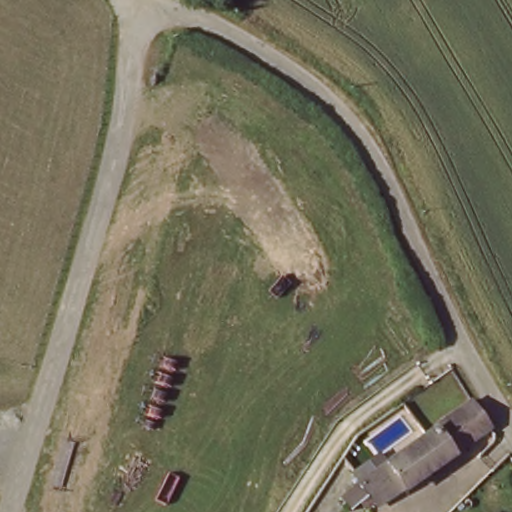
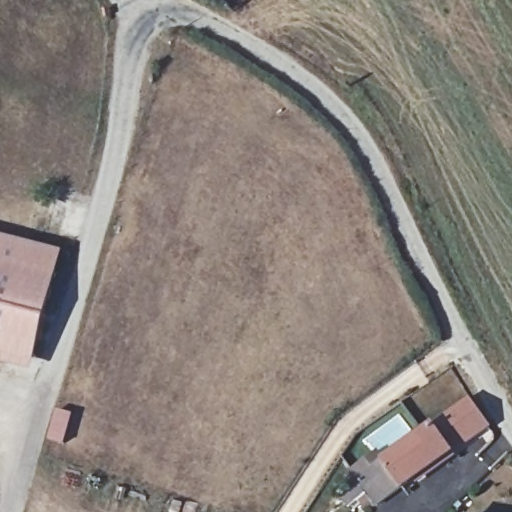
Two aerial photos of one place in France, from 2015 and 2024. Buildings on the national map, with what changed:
new [(32,372),(0,365),(0,236),(63,252),(32,372)]
unchanged [(379,503),(358,476),(472,400),(495,428),(379,503)]
unchanged [(460,512),(456,512),(457,510),(460,512)]

